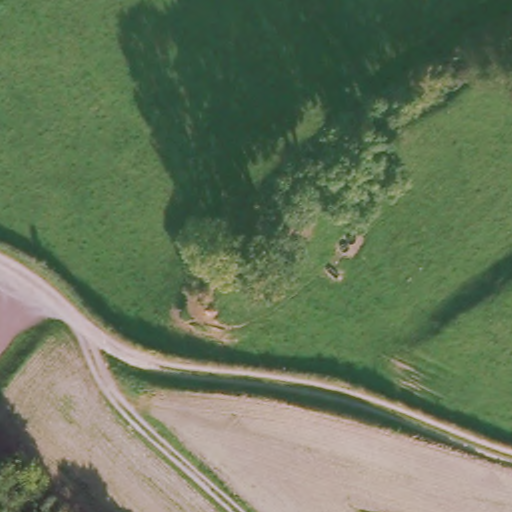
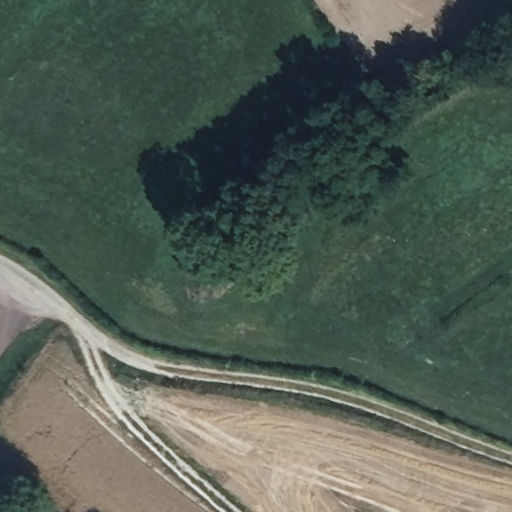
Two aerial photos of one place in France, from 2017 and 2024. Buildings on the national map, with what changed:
[]

